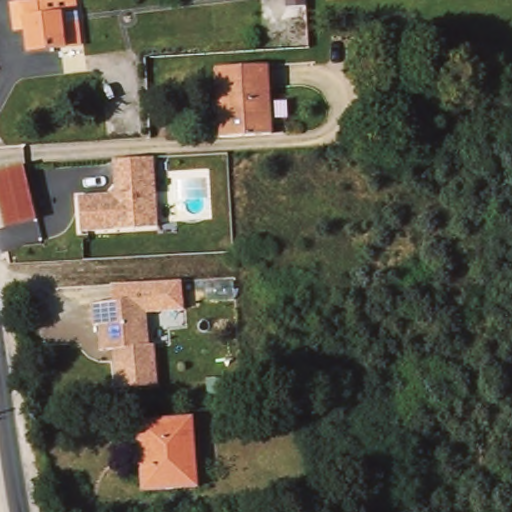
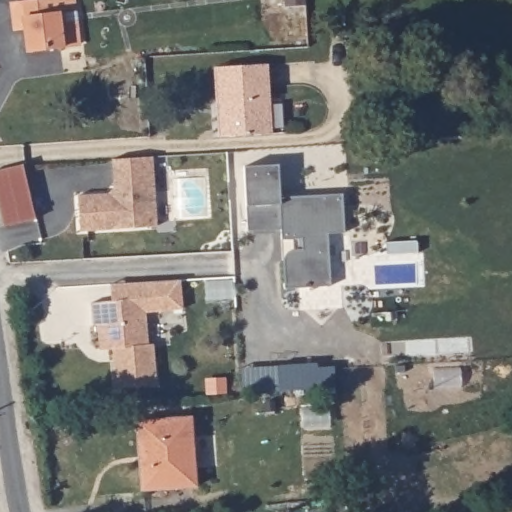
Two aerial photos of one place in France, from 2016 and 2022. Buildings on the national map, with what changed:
unchanged [(83,25),(86,45),(35,50),(32,27),(22,29),(19,4),(37,1),(45,0),(80,0),(82,11),(83,25)]
unchanged [(287,0),(305,0),(305,5),(287,6),(287,0)]
unchanged [(271,133),(221,136),(220,114),(217,67),(225,67),(267,65),(271,133)]
unchanged [(147,156),(155,156),(159,155),(163,226),(151,227),(86,231),(84,195),(115,194),(121,187),(119,159),(147,156)]
unchanged [(42,219),(11,226),(0,183),(0,172),(30,164),(42,219)]
new [(283,239),(282,229),(249,230),(246,166),(280,164),(282,196),(345,193),(347,232),(330,233),(332,285),(286,288),(286,282),(287,282),(285,262),(287,255),(290,251),(293,250),(301,249),(300,238),(283,239)]
new [(202,182),(204,219),(179,220),(176,184),(202,182)]
unchanged [(146,298),(150,345),(155,344),(158,383),(117,386),(115,350),(102,350),(100,325),(94,325),(92,302),(146,298)]
new [(310,364),(310,368),(331,367),(332,387),(277,391),(275,366),(310,364)]
unchanged [(197,484),(145,488),(142,463),(138,420),(152,420),(192,417),(197,484)]

